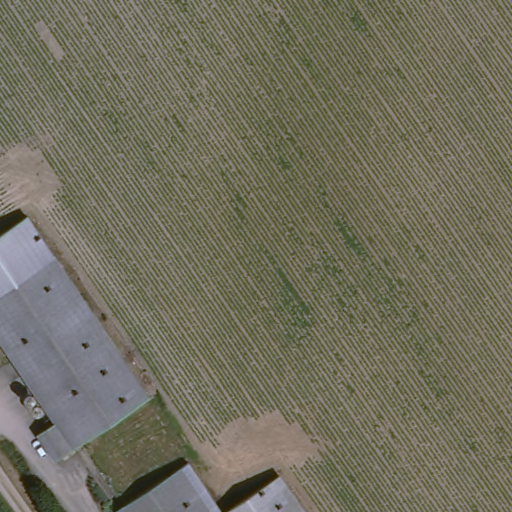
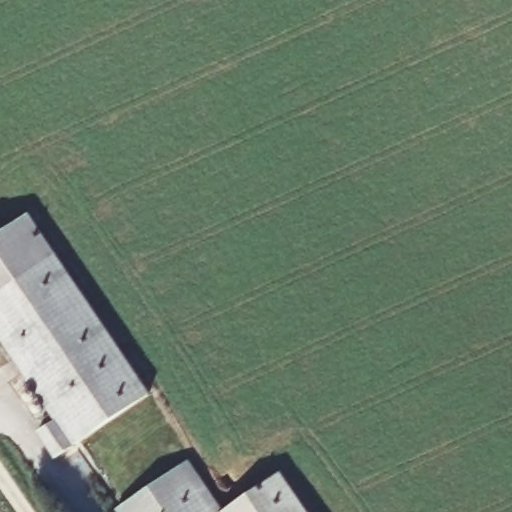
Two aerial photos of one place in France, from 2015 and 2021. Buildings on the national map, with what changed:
unchanged [(26,214),(55,258),(0,296),(0,232),(26,214)]
unchanged [(55,258),(152,397),(59,462),(41,437),(59,423),(0,339),(0,296),(55,258)]
unchanged [(281,470),(309,512),(220,512),(281,470)]
unchanged [(184,471),(212,512),(123,512),(184,471)]

